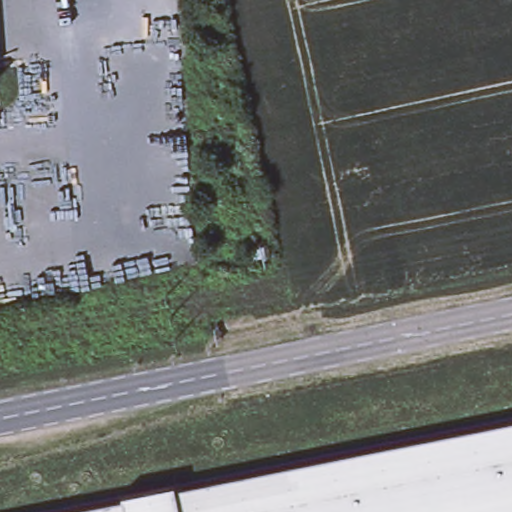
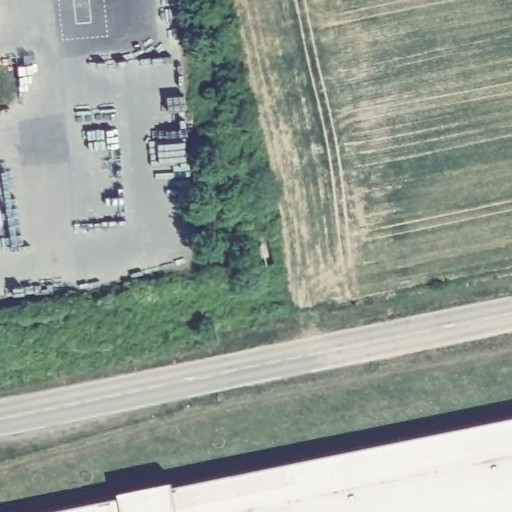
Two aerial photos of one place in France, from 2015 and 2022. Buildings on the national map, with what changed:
unchanged [(125,495),(124,491),(175,481),(175,484),(512,416),(512,512),(45,512),(125,495)]

